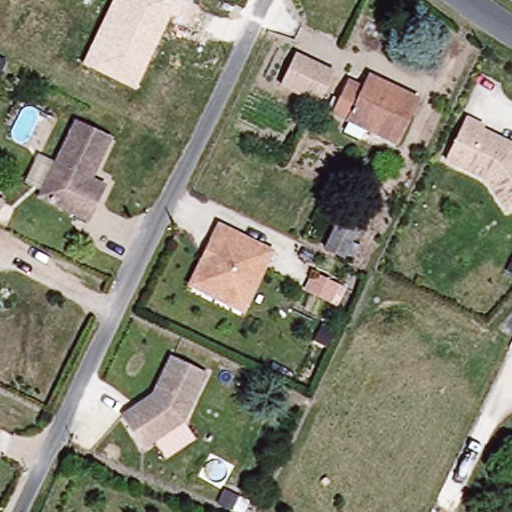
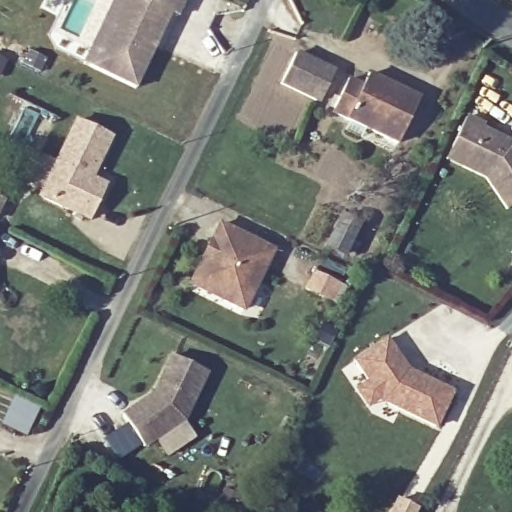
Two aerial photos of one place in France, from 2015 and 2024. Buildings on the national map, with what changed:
unchanged [(177,17),(170,14),(136,90),(83,63),(112,0),(185,0),(177,17)]
unchanged [(317,105),(312,103),(279,86),(294,57),(326,74),(332,76),(317,105)]
unchanged [(331,106),(346,74),(362,82),(370,69),(417,92),(397,140),(331,106)]
unchanged [(483,181),(460,170),(444,161),(450,148),(465,120),(482,129),(480,132),(512,148),(512,207),(503,212),(483,181)]
unchanged [(38,197),(73,124),(110,142),(98,171),(91,170),(85,181),(104,190),(87,221),(38,197)]
unchanged [(355,225),(339,256),(330,251),(323,247),(339,217),(355,225)]
unchanged [(211,241),(219,225),(272,251),(243,311),(224,302),(190,285),(211,241)]
unchanged [(330,306),(306,294),(314,278),(338,291),(330,306)]
new [(353,361),(385,340),(406,371),(450,392),(434,427),(380,401),(378,398),(366,407),(355,390),(367,381),(353,361)]
unchanged [(144,455),(123,424),(154,402),(173,364),(207,380),(184,428),(144,455)]
new [(414,508),(413,512),(390,512),(396,499),(414,508)]

